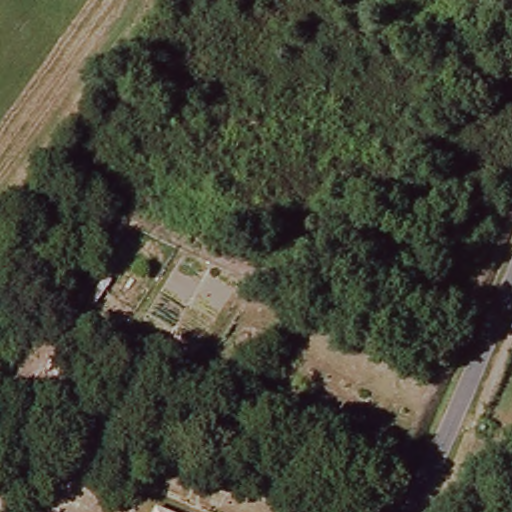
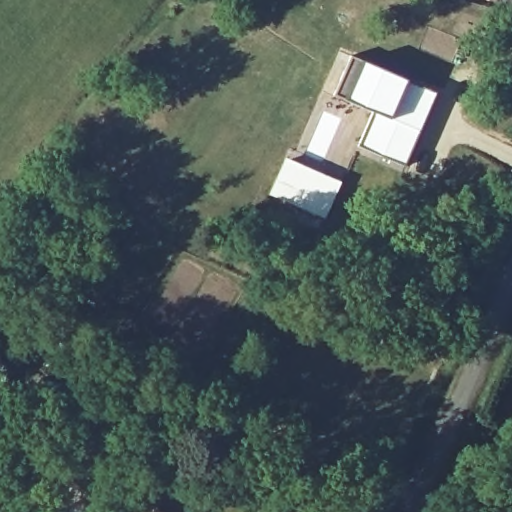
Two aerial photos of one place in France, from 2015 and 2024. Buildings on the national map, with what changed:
new [(362,61),(408,80),(436,94),(407,164),(359,144),(374,111),(345,99),(334,94),(350,56),(362,61)]
new [(340,181),(325,216),(268,194),(283,158),(340,181)]
unchanged [(163,512),(154,512),(155,509),(163,512)]

